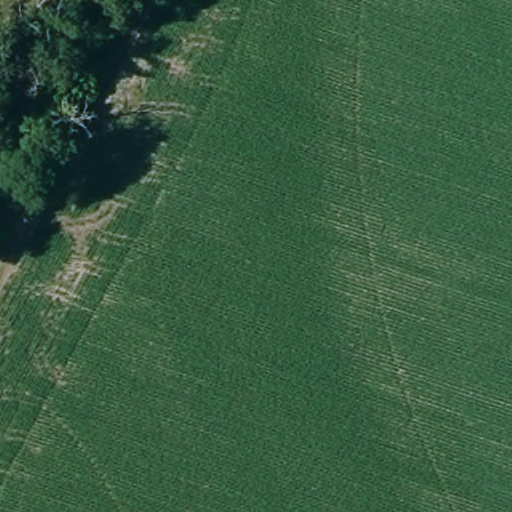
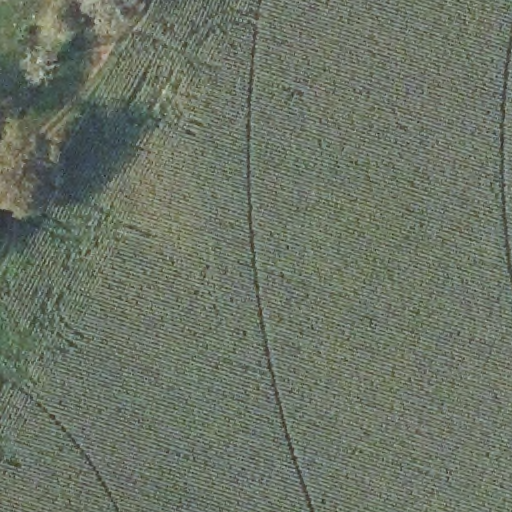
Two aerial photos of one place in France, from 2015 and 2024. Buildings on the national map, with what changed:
[]

